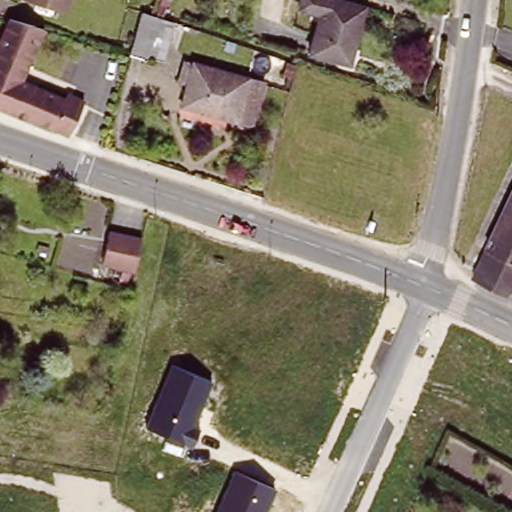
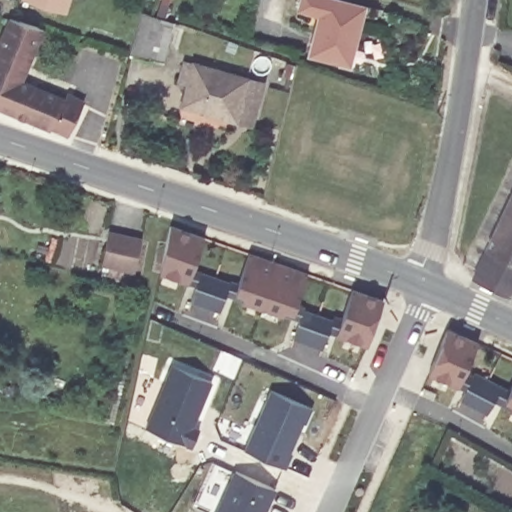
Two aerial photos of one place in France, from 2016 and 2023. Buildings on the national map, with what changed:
unchanged [(36,0),(62,0),(59,7),(36,0)]
unchanged [(355,60),(317,49),(327,9),(305,3),(306,0),(358,0),(369,3),(355,60)]
unchanged [(166,20),(161,37),(175,40),(167,74),(132,66),(133,57),(145,13),(155,16),(166,20)]
unchanged [(3,67),(9,53),(52,69),(48,84),(86,100),(77,130),(65,127),(63,129),(0,104),(0,66),(3,67)]
unchanged [(260,120),(193,104),(197,83),(187,81),(193,58),(270,78),(260,120)]
unchanged [(512,156),(512,161),(510,160),(512,156)]
unchanged [(512,216),(502,211),(512,188),(512,216)]
unchanged [(512,261),(485,249),(502,211),(512,216),(512,261)]
new [(194,267),(239,281),(250,251),(308,272),(297,302),(305,305),(305,308),(341,319),(352,287),(383,298),(368,345),(328,332),(322,349),(294,339),(298,320),(283,314),(225,295),(220,311),(190,301),(195,285),(190,283),(160,273),(170,223),(205,235),(194,267)]
unchanged [(137,271),(101,263),(108,230),(145,238),(137,271)]
unchanged [(512,291),(474,273),(485,249),(512,261),(512,291)]
new [(486,412),(460,399),(465,389),(427,373),(447,328),(479,341),(465,370),(510,389),(512,384),(512,410),(493,400),(486,412)]
unchanged [(145,429),(172,365),(211,380),(193,423),(201,427),(190,447),(145,429)]
new [(307,423),(304,421),(291,451),(292,452),(287,467),(245,449),(270,390),(313,407),(307,423)]
unchanged [(232,470),(275,488),(265,512),(215,512),(232,470)]

